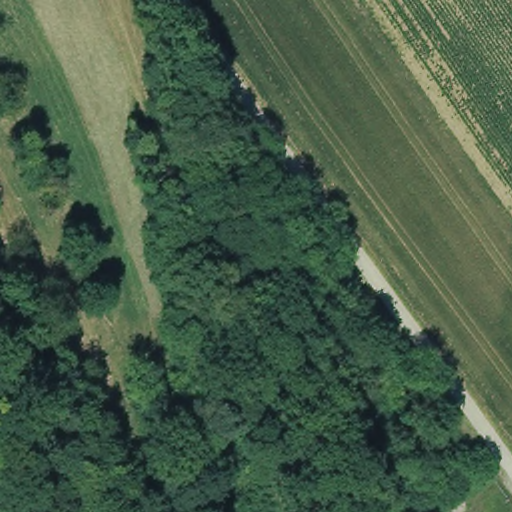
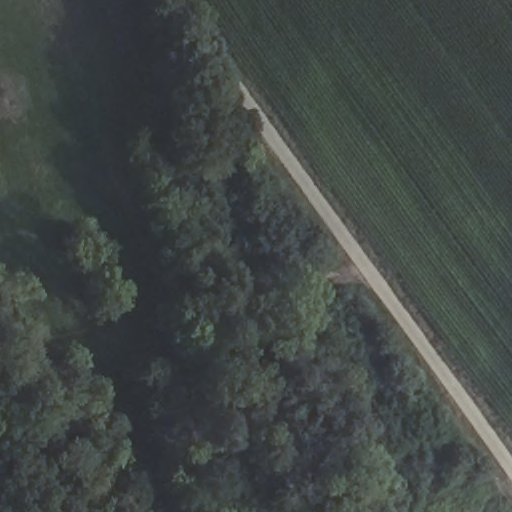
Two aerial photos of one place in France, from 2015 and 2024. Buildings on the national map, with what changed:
unchanged [(243,236),(260,260),(245,289),(210,240),(243,236)]

